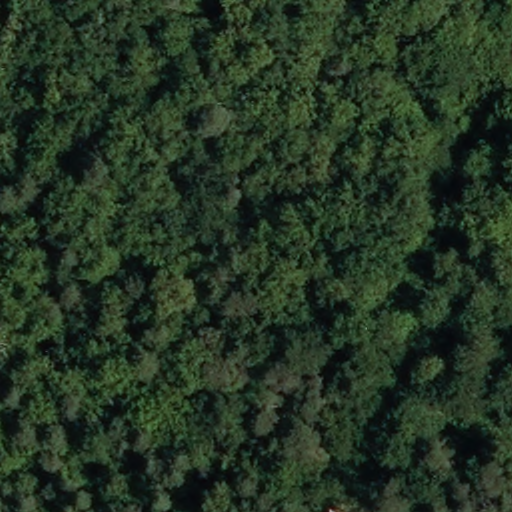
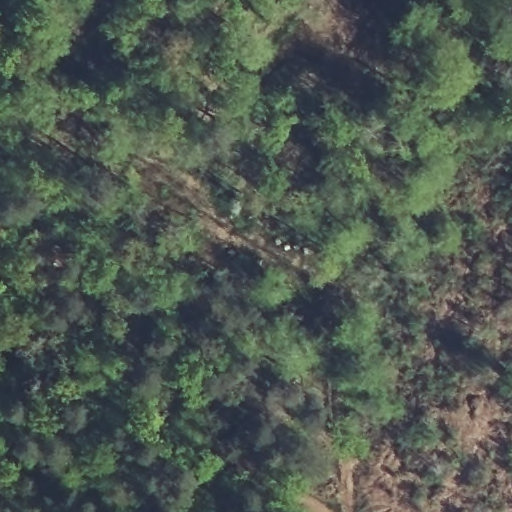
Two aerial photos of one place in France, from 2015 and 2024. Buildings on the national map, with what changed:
[]

